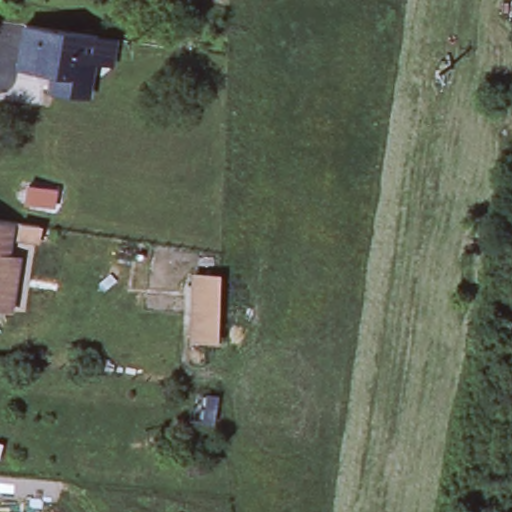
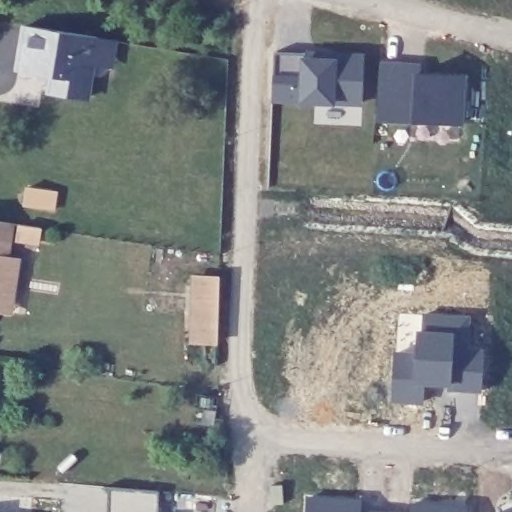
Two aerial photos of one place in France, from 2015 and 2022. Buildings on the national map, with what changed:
unchanged [(48,91),(51,74),(17,67),(23,38),(26,26),(97,41),(115,45),(113,53),(110,70),(91,66),(85,99),(48,91)]
new [(417,66),(416,74),(462,77),(460,121),(375,116),(379,63),(417,66)]
unchanged [(45,209),(25,206),(28,192),(47,195),(45,209)]
unchanged [(0,259),(0,222),(5,223),(0,259)]
unchanged [(55,244),(38,242),(40,227),(57,230),(55,244)]
unchanged [(5,311),(0,311),(0,259),(12,260),(5,311)]
unchanged [(217,342),(193,341),(195,278),(220,279),(217,342)]
new [(415,355),(417,331),(422,332),(423,314),(472,316),(470,351),(482,352),(481,394),(446,393),(446,387),(422,386),(421,405),(390,405),(393,353),(415,355)]
new [(281,484),(282,503),(273,504),(271,485),(281,484)]
new [(159,491),(159,512),(107,512),(107,489),(103,489),(103,486),(159,491)]
new [(362,510),(391,512),(305,512),(306,496),(361,499),(362,510)]
new [(471,504),(471,512),(410,512),(411,501),(471,504)]

